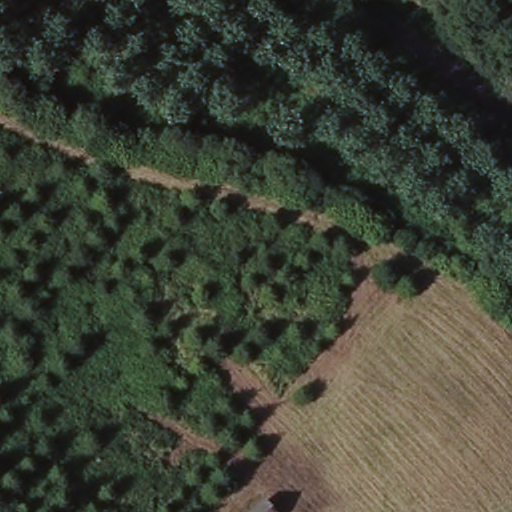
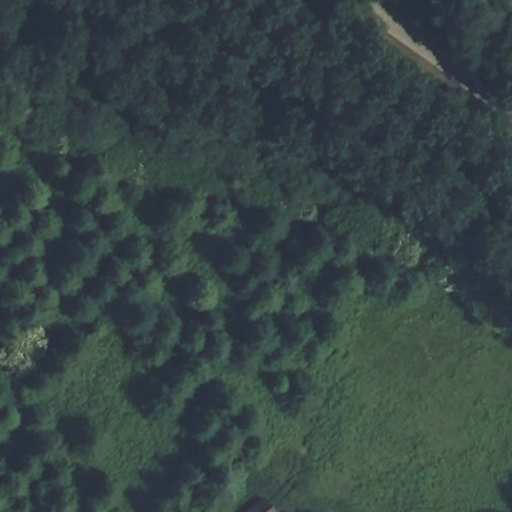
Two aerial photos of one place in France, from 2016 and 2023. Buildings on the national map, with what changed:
unchanged [(277,512),(247,512),(265,498),(277,512)]

